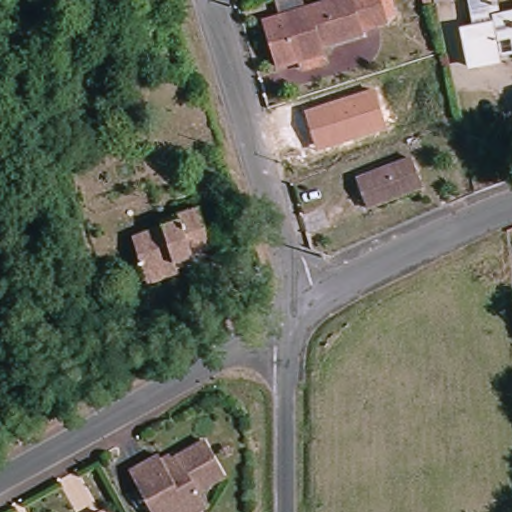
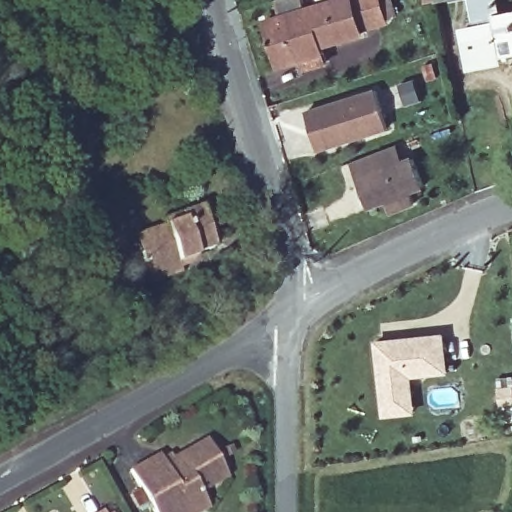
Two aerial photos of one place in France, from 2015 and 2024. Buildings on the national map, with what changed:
unchanged [(280,67),(267,21),(281,17),(279,9),(304,1),(307,10),(340,0),(376,0),(383,23),(357,30),(359,36),(327,46),(332,62),(305,70),(302,61),(280,67)]
unchanged [(467,0),(450,3),(450,0),(467,0)]
unchanged [(502,57),(503,64),(470,70),(463,35),(476,31),(470,0),(497,0),(501,20),(512,18),(512,55),(502,57)]
unchanged [(377,91),(388,129),(319,150),(307,112),(377,91)]
unchanged [(366,209),(356,180),(414,161),(423,190),(366,209)]
unchanged [(136,257),(131,237),(141,235),(167,227),(165,222),(197,210),(212,252),(194,257),(194,263),(176,268),(179,277),(144,286),(141,276),(136,257)]
new [(382,418),(373,340),(444,333),(449,373),(412,378),(415,415),(382,418)]
unchanged [(130,470),(158,455),(163,463),(205,441),(224,476),(198,490),(207,506),(196,512),(153,512),(130,470)]

